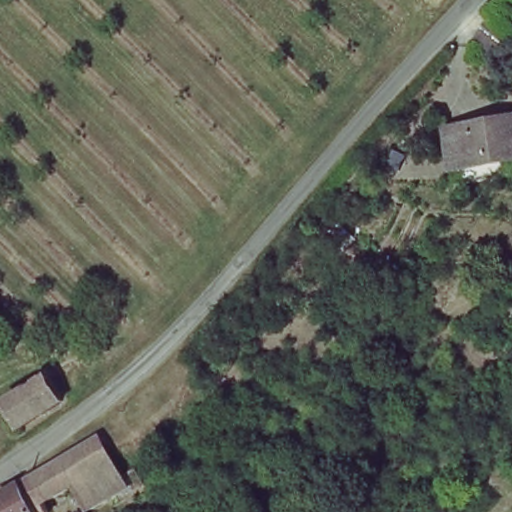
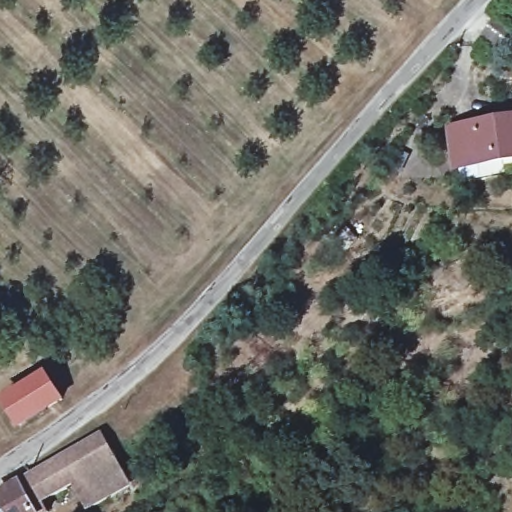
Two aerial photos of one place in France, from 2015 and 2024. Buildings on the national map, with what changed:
unchanged [(511,47),(495,64),(471,43),(487,25),(511,47)]
unchanged [(512,118),(512,159),(458,165),(453,124),(512,118)]
unchanged [(7,405),(47,376),(65,400),(25,429),(7,405)]
unchanged [(104,435),(135,489),(93,512),(90,512),(76,485),(37,506),(39,512),(6,512),(0,503),(0,495),(20,482),(104,435)]

